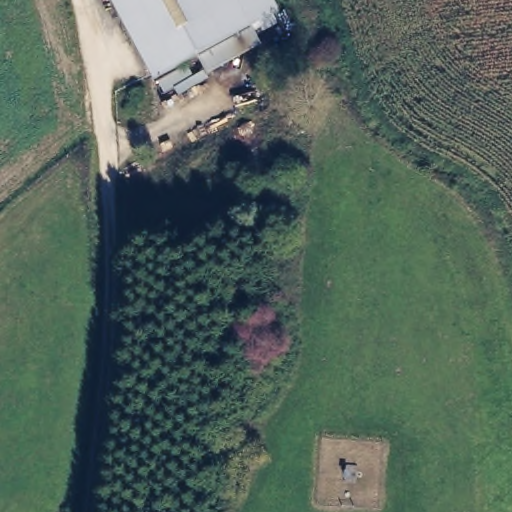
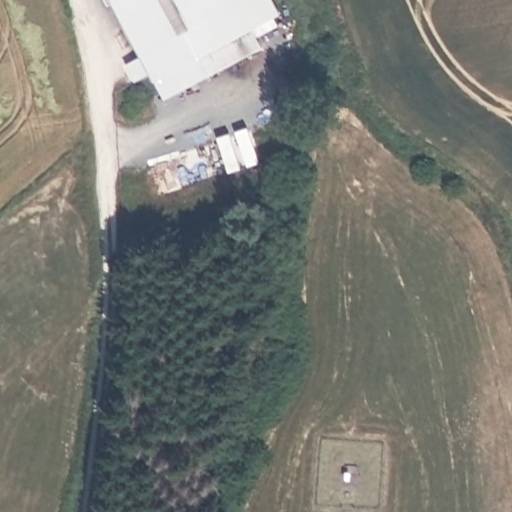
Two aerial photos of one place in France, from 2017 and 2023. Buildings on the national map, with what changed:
unchanged [(278,11),(269,16),(275,24),(252,33),(259,46),(258,46),(205,74),(196,55),(183,62),(190,77),(163,91),(151,79),(110,2),(106,4),(104,0),(272,0),(278,11)]

